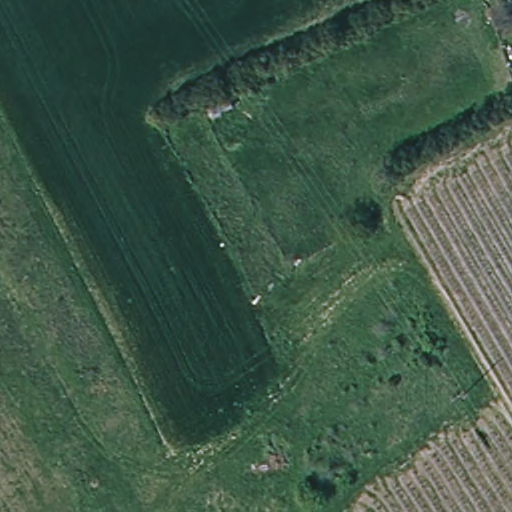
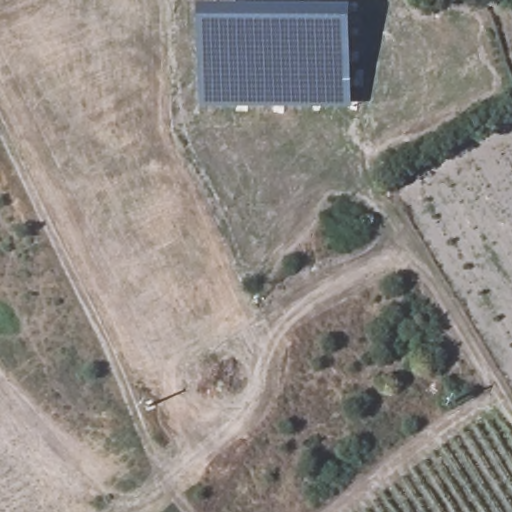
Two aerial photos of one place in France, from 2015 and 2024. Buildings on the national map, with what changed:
new [(356,5),(355,109),(204,107),(205,5),(356,5)]

